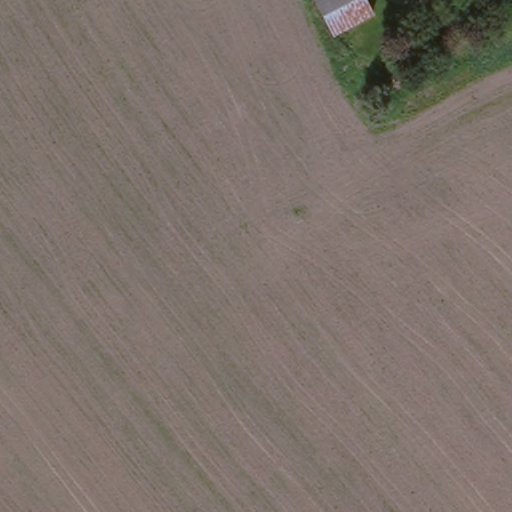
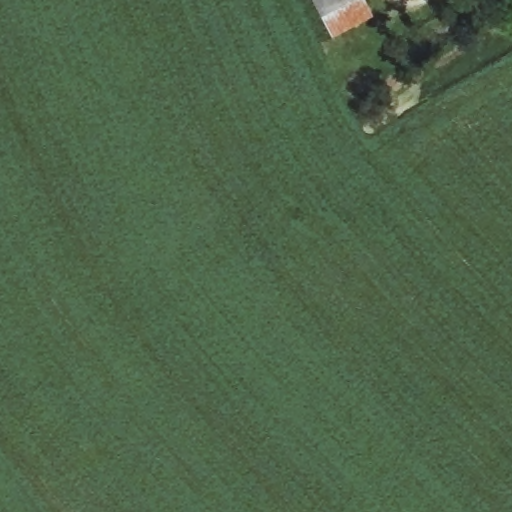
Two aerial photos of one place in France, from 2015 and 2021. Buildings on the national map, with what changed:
unchanged [(382,8),(320,38),(303,0),(378,0),(382,8)]

